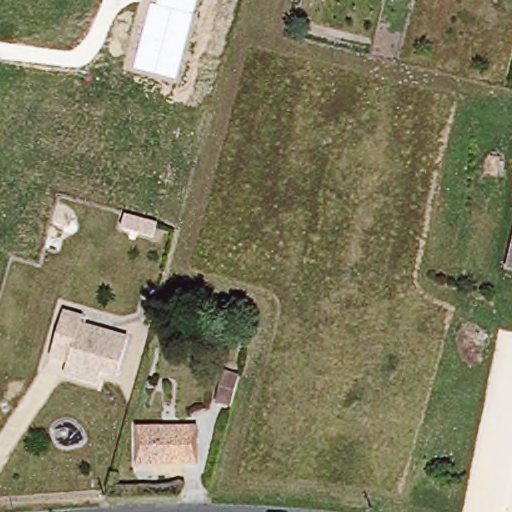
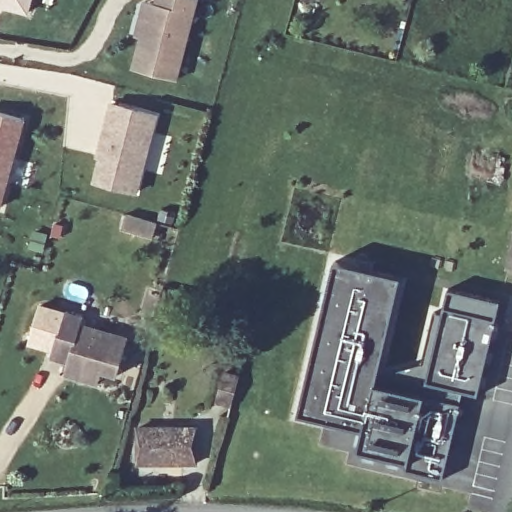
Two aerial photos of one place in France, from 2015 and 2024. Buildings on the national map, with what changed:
new [(28,12),(0,5),(0,0),(31,0),(28,12)]
unchanged [(178,79),(131,68),(140,36),(134,35),(143,0),(153,2),(154,0),(198,0),(178,79)]
unchanged [(139,192),(93,182),(99,157),(96,156),(109,102),(159,113),(139,192)]
unchanged [(1,205),(0,205),(0,111),(26,118),(1,205)]
unchanged [(497,282),(512,223),(512,286),(497,282)]
new [(403,276),(382,367),(377,385),(428,397),(412,462),(359,451),(365,426),(300,412),(335,259),(403,276)]
new [(412,462),(428,397),(377,385),(382,367),(422,359),(433,310),(445,313),(451,287),(502,300),(479,392),(464,389),(445,471),(412,462)]
unchanged [(63,372),(66,360),(50,355),(64,311),(83,317),(80,324),(126,339),(115,375),(99,371),(96,382),(63,372)]
unchanged [(219,399),(228,371),(243,375),(235,403),(219,399)]
unchanged [(135,466),(136,430),(195,429),(195,465),(135,466)]

